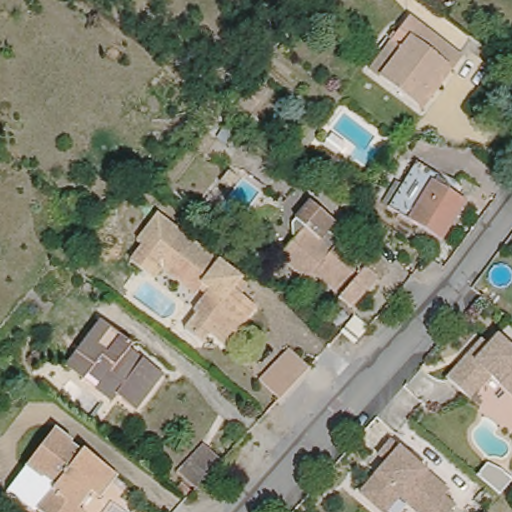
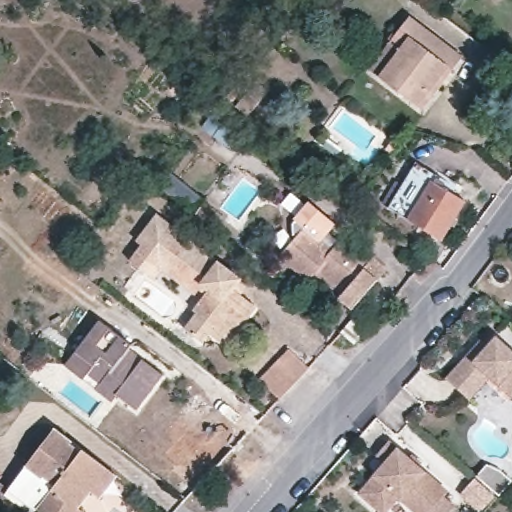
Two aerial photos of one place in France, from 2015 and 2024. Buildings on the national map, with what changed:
unchanged [(379,78),(368,70),(387,44),(408,18),(460,57),(436,88),(434,87),(418,107),(412,103),(379,78)]
unchanged [(267,93),(250,117),(238,109),(256,85),(267,93)]
unchanged [(388,212),(414,166),(436,179),(432,186),(463,206),(440,244),(408,225),(388,212)]
unchanged [(237,178),(228,190),(219,183),(229,171),(237,178)]
unchanged [(347,308),(335,298),(337,295),(309,271),(303,279),(276,255),(275,255),(291,236),(287,233),(280,227),(286,221),(304,200),(329,221),(322,229),(334,240),(335,238),(363,262),(378,272),(370,280),(347,308)]
unchanged [(240,290),(254,302),(223,341),(208,329),(201,337),(184,324),(196,308),(193,305),(203,290),(198,285),(194,290),(162,266),(155,275),(150,272),(130,257),(142,241),(137,236),(157,209),(218,257),(239,274),(239,275),(247,281),(240,290)]
unchanged [(137,405),(117,390),(112,397),(95,385),(100,379),(88,369),(83,374),(65,361),(76,347),(99,316),(131,340),(129,344),(143,354),(143,356),(162,371),(137,405)]
unchanged [(353,318),(368,330),(355,344),(341,332),(353,318)]
unchanged [(469,398),(444,376),(464,353),(478,338),(485,344),(494,334),(512,350),(512,396),(488,376),(469,398)]
unchanged [(311,367),(282,398),(263,377),(289,346),(311,367)]
unchanged [(55,484),(45,476),(42,478),(27,466),(53,429),(71,441),(69,444),(80,452),(83,449),(104,466),(116,476),(101,498),(90,491),(78,507),(82,511),(81,512),(42,512),(37,508),(52,490),(55,484)]
unchanged [(178,472),(202,444),(222,461),(196,488),(178,472)]
unchanged [(392,444),(450,494),(445,501),(455,510),(453,512),(417,512),(414,509),(403,499),(391,512),(381,512),(362,496),(388,467),(379,458),(392,444)]

